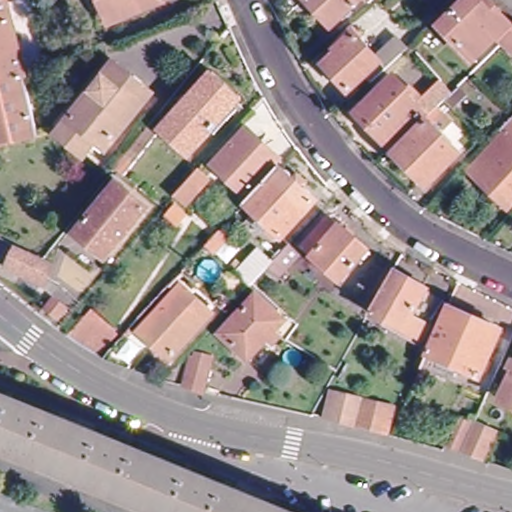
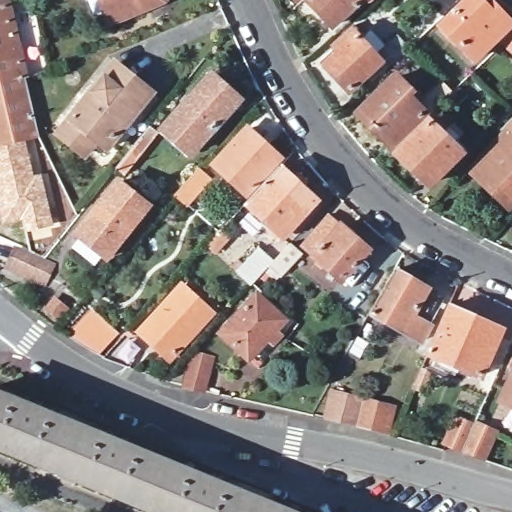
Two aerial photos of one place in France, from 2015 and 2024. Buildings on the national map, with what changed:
unchanged [(157,2),(156,3),(103,26),(92,0),(159,0),(159,1),(157,2)]
unchanged [(309,0),(356,0),(331,24),(309,0)]
unchanged [(370,0),(372,0),(370,1),(370,0)]
unchanged [(411,0),(462,0),(436,24),(411,0)]
unchanged [(477,0),(480,3),(483,0),(508,25),(473,60),(441,29),(469,0),(477,0)]
unchanged [(17,63),(21,81),(28,106),(34,132),(0,142),(0,2),(2,1),(17,63)]
unchanged [(341,40),(338,36),(348,26),(381,60),(348,91),(320,60),(341,40)]
unchanged [(505,41),(512,35),(512,47),(505,41)]
unchanged [(70,121),(114,64),(151,94),(102,153),(96,148),(85,162),(55,138),(70,121)]
unchanged [(393,144),(358,106),(393,71),(407,85),(403,89),(427,112),(415,123),(393,144)]
unchanged [(203,81),(232,106),(186,161),(157,136),(203,81)]
unchanged [(438,101),(445,108),(433,120),(460,146),(428,179),(396,147),(417,126),(415,123),(427,112),(438,101)]
unchanged [(503,207),(465,169),(500,132),(496,129),(512,113),(512,197),(503,207)]
unchanged [(280,159),(246,196),(214,168),(247,130),(280,159)]
unchanged [(153,139),(120,181),(110,173),(134,143),(143,131),(153,139)]
new [(34,174),(42,172),(52,224),(25,232),(22,219),(4,224),(0,207),(0,142),(25,135),(34,174)]
unchanged [(277,168),(313,203),(283,237),(245,204),(277,168)]
unchanged [(174,197),(181,187),(187,181),(196,170),(207,179),(197,190),(184,206),(174,197)]
unchanged [(114,187),(144,212),(100,264),(71,241),(114,187)]
unchanged [(367,252),(340,282),(300,245),(327,216),(367,252)]
unchanged [(228,240),(217,252),(209,244),(217,235),(220,232),(228,240)]
unchanged [(251,284),(237,271),(258,246),(273,260),(282,250),(288,244),(300,255),(294,261),(280,276),(268,265),(255,280),(251,284)]
unchanged [(45,266),(37,287),(2,274),(11,253),(45,266)]
unchanged [(381,272),(430,301),(410,343),(358,314),(381,272)]
unchanged [(178,287),(206,314),(165,358),(136,332),(178,287)]
unchanged [(286,322),(250,360),(221,333),(256,295),(286,322)]
unchanged [(50,304),(61,313),(55,322),(43,312),(50,304)]
unchanged [(438,306),(489,331),(469,375),(450,366),(446,375),(438,371),(442,363),(419,351),(438,306)]
unchanged [(64,341),(88,315),(114,338),(95,358),(64,341)]
unchanged [(102,362),(124,339),(140,354),(125,372),(102,362)]
unchanged [(186,386),(193,356),(214,360),(207,391),(186,386)]
unchanged [(494,397),(512,360),(512,406),(494,397)]
unchanged [(324,416),(331,392),(392,409),(386,431),(324,416)]
unchanged [(294,512),(163,512),(161,511),(0,446),(0,394),(135,448),(294,512)]
unchanged [(461,426),(485,437),(473,462),(450,451),(461,426)]

